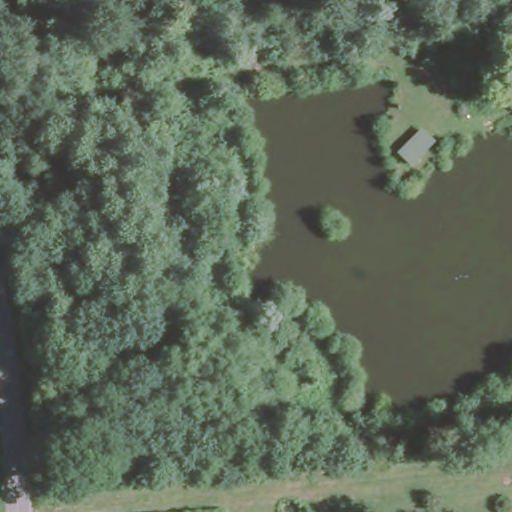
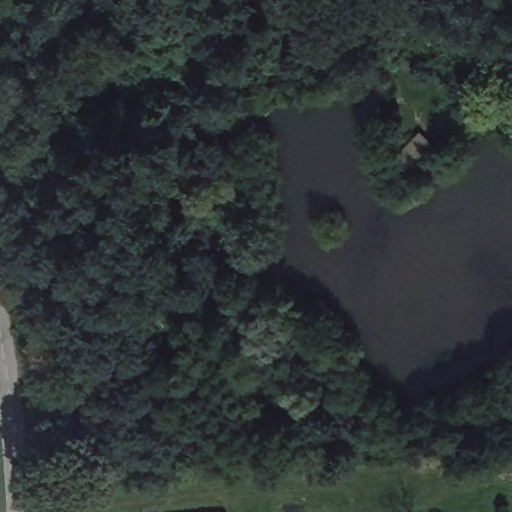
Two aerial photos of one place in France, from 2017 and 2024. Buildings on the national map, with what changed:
unchanged [(407,164),(395,155),(417,125),(430,136),(407,164)]

